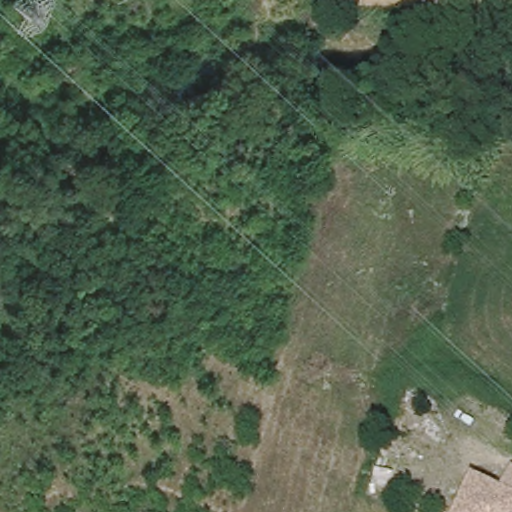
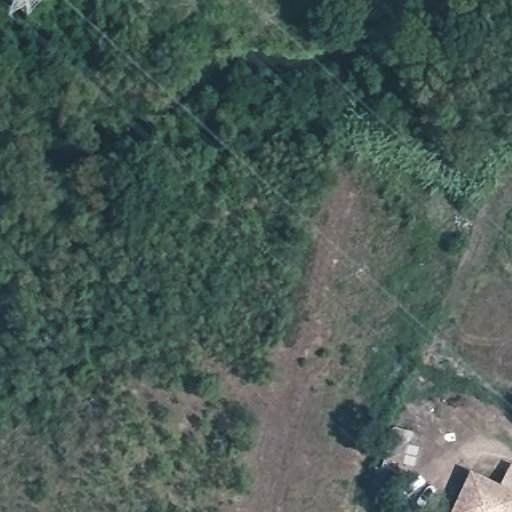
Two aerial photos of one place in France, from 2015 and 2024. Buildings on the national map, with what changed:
unchanged [(468,471),(512,491),(512,512),(449,512),(468,471)]

